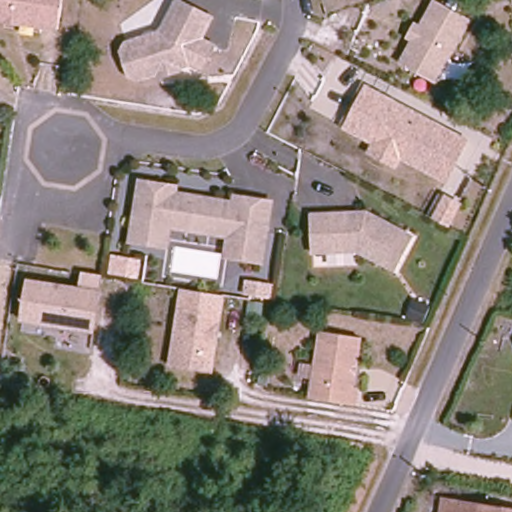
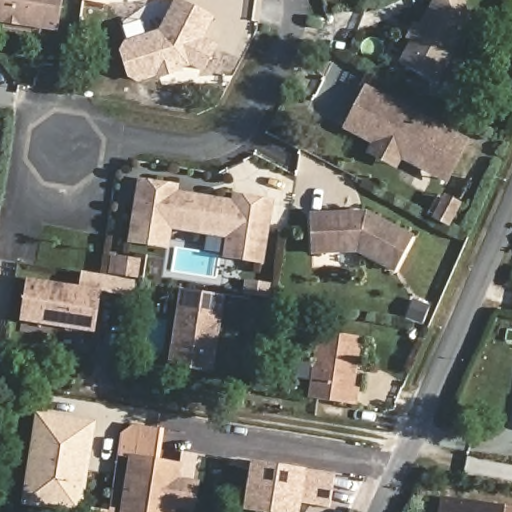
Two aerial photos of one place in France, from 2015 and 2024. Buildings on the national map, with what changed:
unchanged [(0,23),(0,0),(58,0),(55,28),(0,23)]
unchanged [(140,83),(127,83),(118,51),(158,34),(169,1),(206,14),(197,36),(211,42),(200,69),(191,61),(171,70),(158,76),(140,83)]
unchanged [(465,26),(431,76),(410,63),(398,55),(411,36),(406,33),(413,23),(416,25),(418,26),(432,5),(465,26)]
unchanged [(343,131),(366,86),(468,140),(447,183),(402,163),(397,171),(367,155),(370,145),(343,131)]
unchanged [(226,238),(224,237),(170,228),(167,228),(164,247),(162,247),(132,242),(128,241),(140,183),(154,185),(175,189),(174,195),(176,196),(185,197),(195,199),(226,204),(233,205),(234,199),(270,205),(269,210),(258,264),(244,261),(222,258),(226,238)]
unchanged [(400,227),(414,235),(393,266),(393,267),(359,245),(347,244),(320,243),(323,206),(353,207),(372,208),(400,227)]
unchanged [(98,291),(89,332),(18,319),(24,277),(98,291)]
unchanged [(168,364),(170,351),(183,290),(222,296),(210,358),(207,370),(168,364)]
unchanged [(313,400),(324,333),(360,338),(352,387),(356,388),(353,405),(313,400)]
new [(43,418),(95,425),(89,461),(87,469),(81,510),(45,505),(30,503),(37,456),(43,418)]
new [(195,508),(175,506),(174,512),(125,512),(133,458),(181,465),(178,481),(198,483),(195,508)]
new [(302,505),(301,512),(251,512),(242,511),(249,463),(335,475),(330,509),(302,505)]
unchanged [(444,497),(512,509),(512,512),(441,512),(444,497)]

